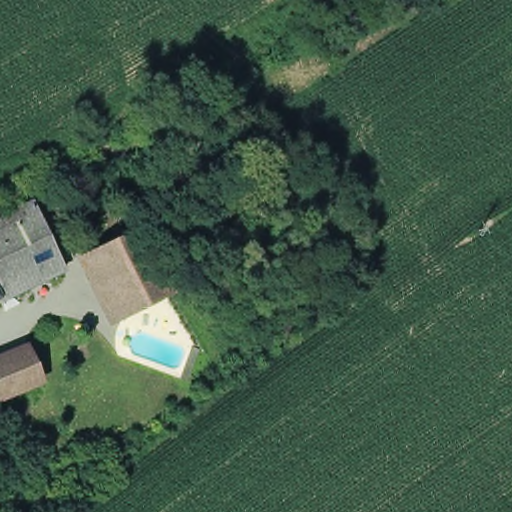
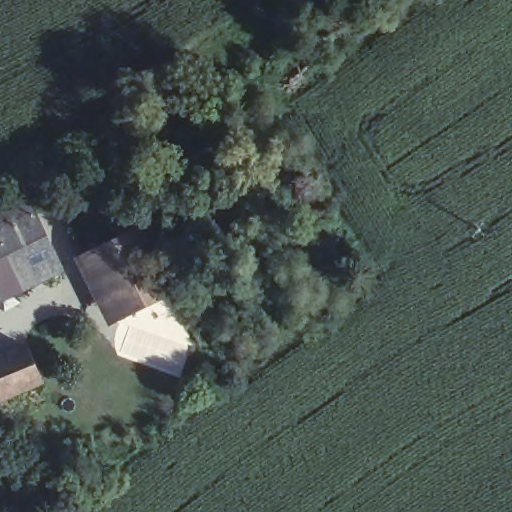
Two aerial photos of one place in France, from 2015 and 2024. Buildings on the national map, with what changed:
unchanged [(61,268),(0,298),(0,221),(32,205),(61,268)]
unchanged [(167,295),(117,319),(85,251),(135,227),(167,295)]
unchanged [(44,380),(0,399),(0,350),(22,341),(44,380)]

